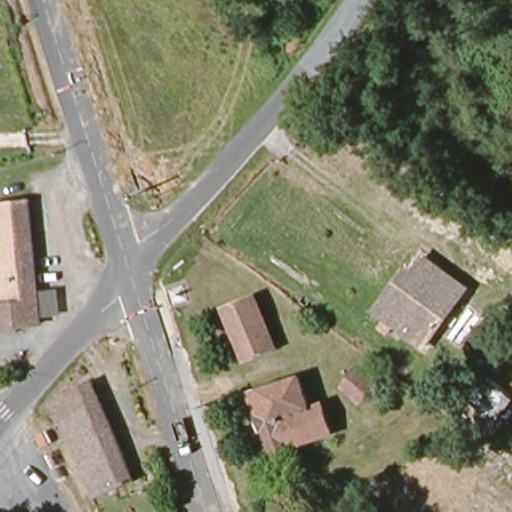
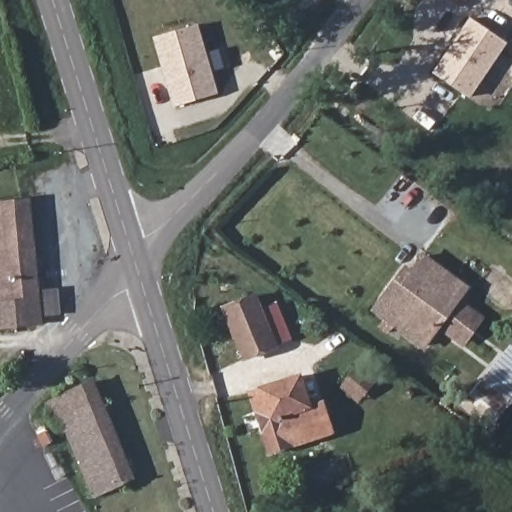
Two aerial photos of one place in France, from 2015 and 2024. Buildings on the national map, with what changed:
new [(466,2),(464,0),(467,0),(466,2)]
new [(471,99),(432,73),(469,18),(508,44),(471,99)]
new [(219,94),(173,107),(153,38),(199,25),(219,94)]
unchanged [(0,332),(0,327),(0,203),(32,199),(45,325),(0,332)]
unchanged [(471,287),(432,347),(381,311),(393,292),(410,269),(416,273),(427,257),(471,287)]
demolished [(181,320),(176,303),(193,298),(198,315),(181,320)]
unchanged [(248,361),(230,307),(263,298),(279,352),(248,361)]
new [(459,408),(510,344),(512,345),(512,405),(490,432),(459,408)]
demolished [(313,382),(325,362),(342,373),(330,392),(313,382)]
unchanged [(272,449),(253,391),(306,374),(314,403),(329,399),(337,428),(272,449)]
demolished [(494,383),(512,394),(512,398),(497,418),(478,405),(494,383)]
unchanged [(103,496),(74,429),(67,433),(58,409),(63,401),(106,385),(145,479),(103,496)]
unchanged [(417,413),(406,406),(412,398),(422,405),(417,413)]

